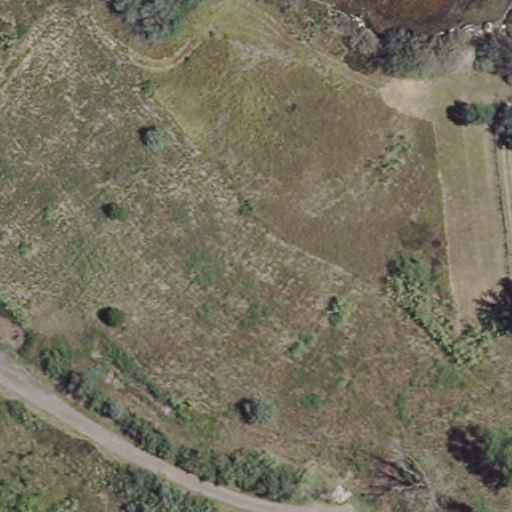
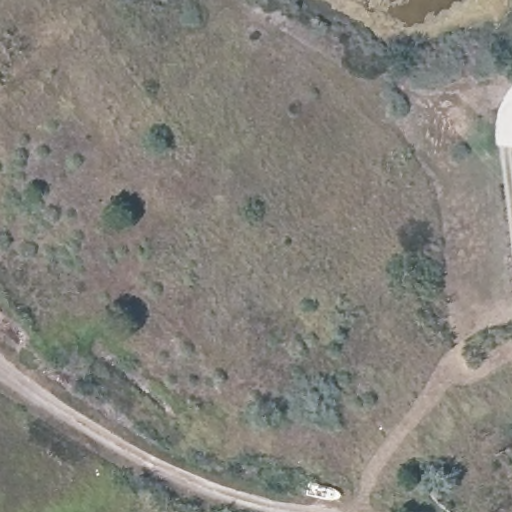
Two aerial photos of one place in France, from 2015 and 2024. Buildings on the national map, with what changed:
unchanged [(406,497),(393,487),(403,474),(417,484),(406,497)]

